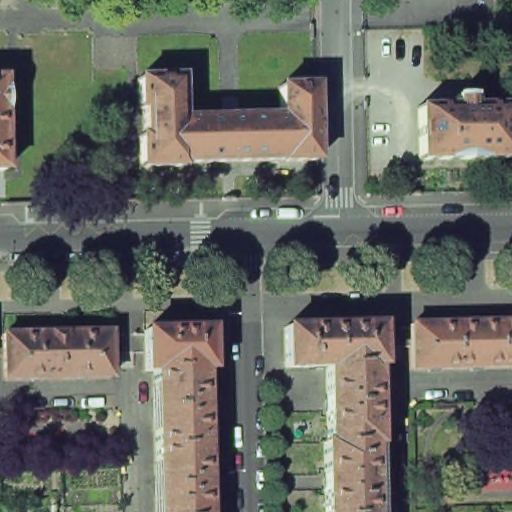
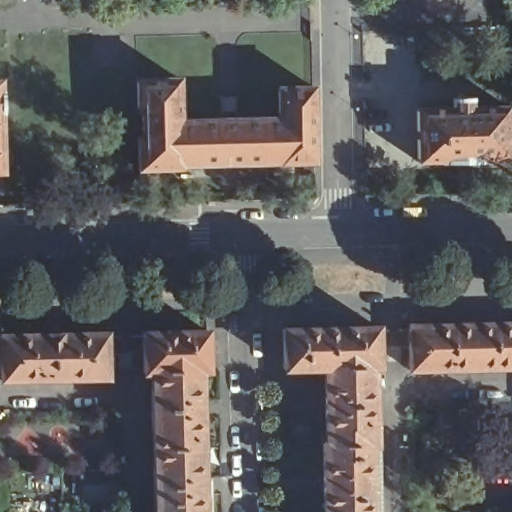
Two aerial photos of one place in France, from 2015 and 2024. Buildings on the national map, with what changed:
unchanged [(179,77),(180,119),(279,117),(279,87),(313,86),(315,161),(280,162),(280,161),(181,163),(181,167),(139,168),(139,136),(143,136),(143,109),(138,109),(137,78),(179,77)]
unchanged [(1,78),(3,171),(0,172),(0,79),(1,78)]
unchanged [(422,107),(459,106),(458,97),(476,97),(476,106),(512,105),(512,159),(423,161),(422,107)]
unchanged [(284,363),(283,323),(378,320),(379,361),(373,361),(325,362),(284,363)]
unchanged [(497,323),(498,367),(453,368),(452,324),(497,323)]
unchanged [(498,367),(497,323),(512,323),(512,367),(498,367)]
unchanged [(411,369),(410,325),(452,324),(453,368),(411,369)]
unchanged [(207,330),(208,370),(201,370),(153,371),(144,371),(143,331),(207,330)]
unchanged [(109,332),(110,377),(3,380),(2,334),(109,332)]
unchanged [(374,381),(375,381),(375,416),(375,436),(327,437),(327,407),(326,407),(325,392),(326,392),(325,362),(373,361),(374,381)]
unchanged [(202,400),(203,400),(203,415),(202,415),(203,447),(155,448),(154,430),(153,430),(152,386),(153,386),(153,371),(201,370),(202,400)]
unchanged [(351,512),(325,512),(324,485),(323,470),(324,470),(323,437),(327,437),(375,436),(377,511),(351,512)]
unchanged [(208,477),(209,512),(156,512),(154,464),(155,464),(155,448),(203,447),(204,478),(208,477)]
unchanged [(377,512),(351,512),(377,511),(377,512)]

